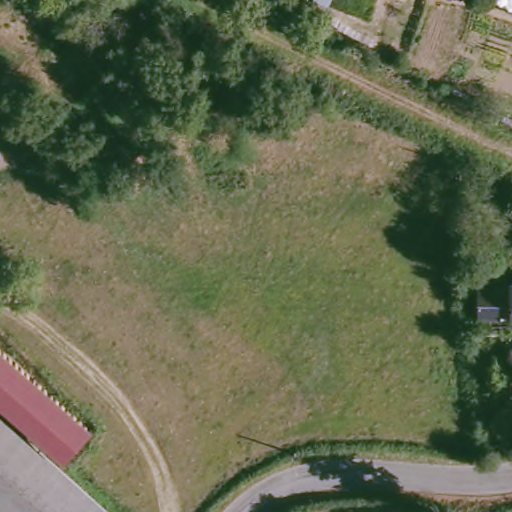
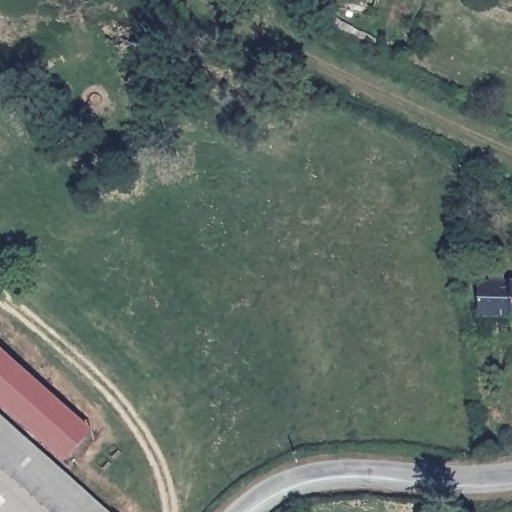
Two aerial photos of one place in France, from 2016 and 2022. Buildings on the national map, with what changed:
unchanged [(317,0),(340,0),(335,9),(316,5),(317,0)]
unchanged [(499,285),(512,285),(512,317),(500,318),(499,285)]
unchanged [(101,444),(71,472),(0,394),(0,333),(101,444)]
unchanged [(94,512),(0,512),(0,409),(94,512)]

